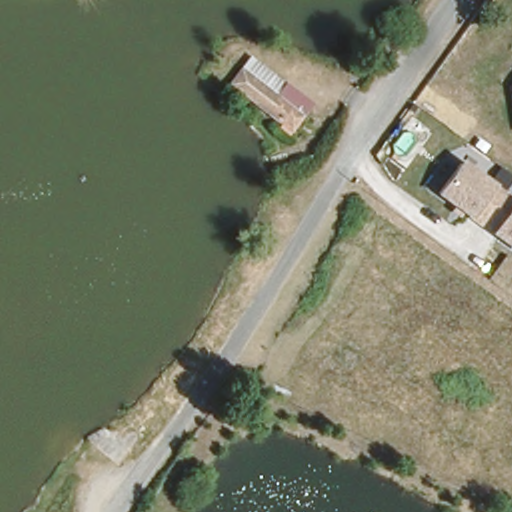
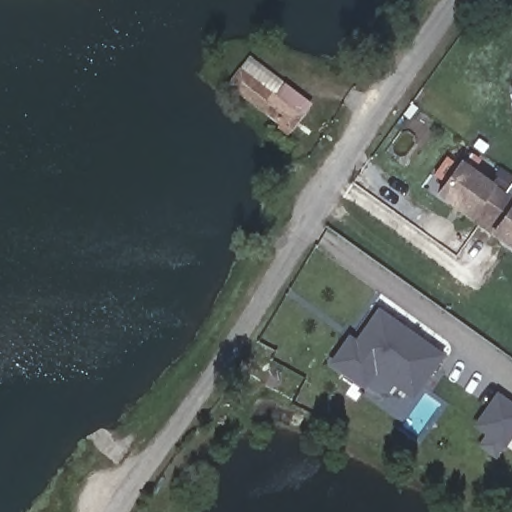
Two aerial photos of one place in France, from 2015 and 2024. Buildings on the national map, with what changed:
unchanged [(285,84),(276,95),(302,115),(288,134),(222,86),(247,56),(285,84)]
unchanged [(460,159),(495,185),(512,196),(512,250),(489,234),(502,215),(483,201),(471,220),(432,194),(460,159)]
new [(402,387),(378,370),(367,386),(334,363),(351,338),(358,343),(381,311),(445,357),(426,385),(417,397),(402,387)]
new [(499,398),(512,406),(512,440),(508,447),(480,429),(499,398)]

